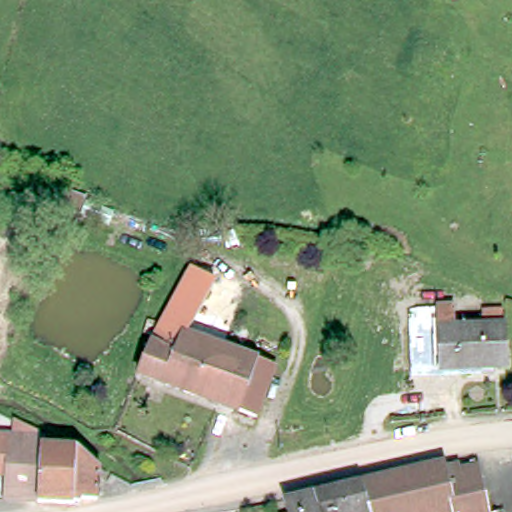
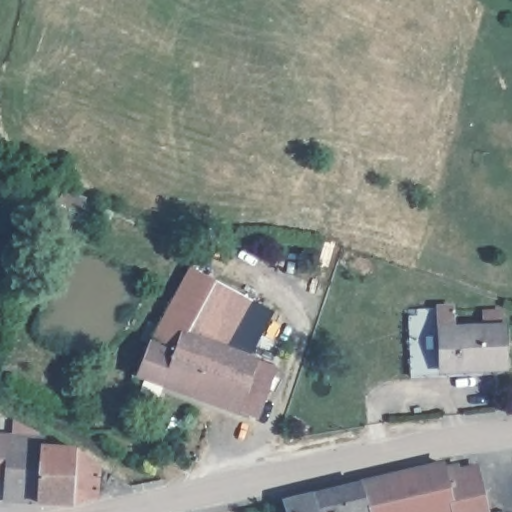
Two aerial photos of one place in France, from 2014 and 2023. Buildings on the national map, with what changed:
unchanged [(154,344),(191,273),(215,286),(190,334),(230,350),(275,368),(256,419),(140,376),(154,344)]
new [(190,334),(215,286),(252,304),(230,350),(190,334)]
unchanged [(440,370),(438,328),(482,325),(481,309),(500,308),(501,324),(503,366),(440,370)]
unchanged [(43,498),(42,498),(43,498),(12,495),(13,472),(0,471),(0,431),(15,432),(17,416),(49,432),(49,435),(48,442),(82,444),(105,465),(103,490),(102,497),(85,496),(85,501),(79,501),(43,498)]
unchanged [(442,467),(442,469),(456,467),(457,472),(476,468),(486,512),(370,512),(360,485),(442,467)]
unchanged [(360,485),(370,512),(318,512),(312,496),(360,485)]
unchanged [(312,496),(318,512),(291,512),(287,502),(312,496)]

